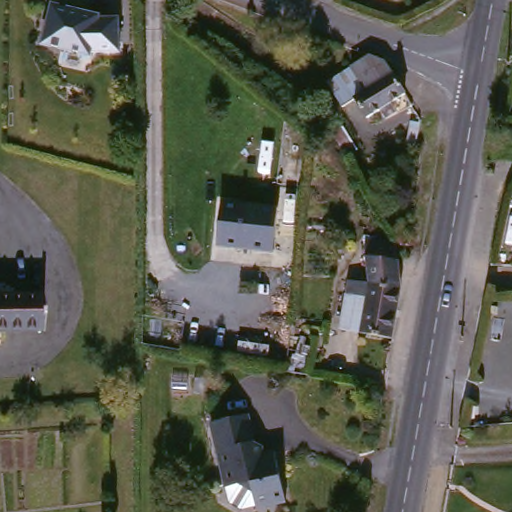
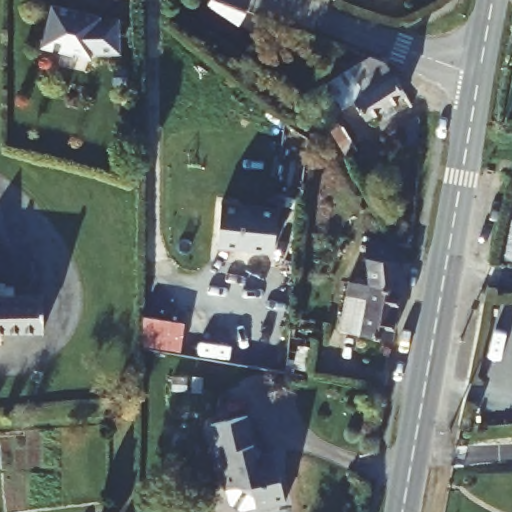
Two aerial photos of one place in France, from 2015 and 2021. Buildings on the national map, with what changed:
unchanged [(120,52),(91,51),(90,57),(42,47),(51,4),(104,16),(119,15),(120,52)]
unchanged [(356,89),(341,96),(329,75),(372,53),(386,58),(404,91),(369,111),(356,89)]
unchanged [(221,243),(223,199),(280,202),(278,246),(221,243)]
unchanged [(351,274),(368,278),(366,237),(394,243),(398,262),(398,285),(391,333),(385,332),(340,325),(351,274)]
unchanged [(43,322),(0,321),(0,289),(42,289),(43,322)]
new [(184,323),(181,352),(141,346),(143,317),(184,323)]
unchanged [(253,450),(270,445),(283,495),(254,502),(249,485),(238,478),(223,482),(206,418),(242,409),(253,450)]

